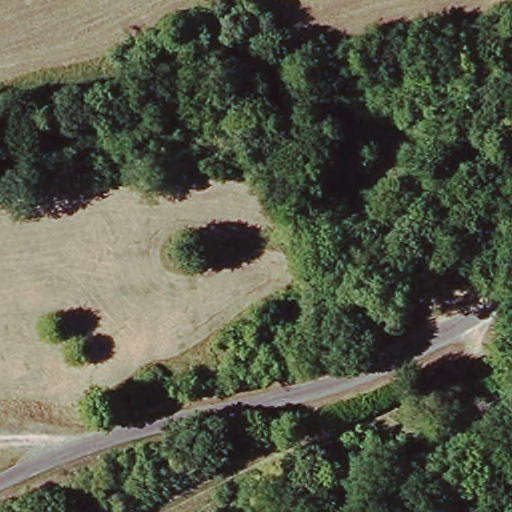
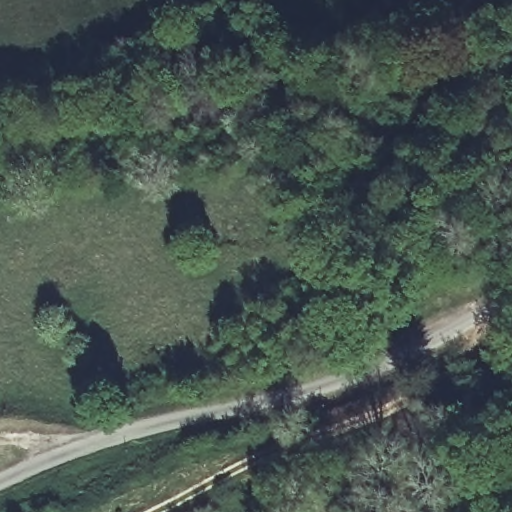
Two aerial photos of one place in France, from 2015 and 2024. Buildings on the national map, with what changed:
unchanged [(264,337),(270,346),(253,359),(235,335),(268,310),(280,325),(264,337)]

